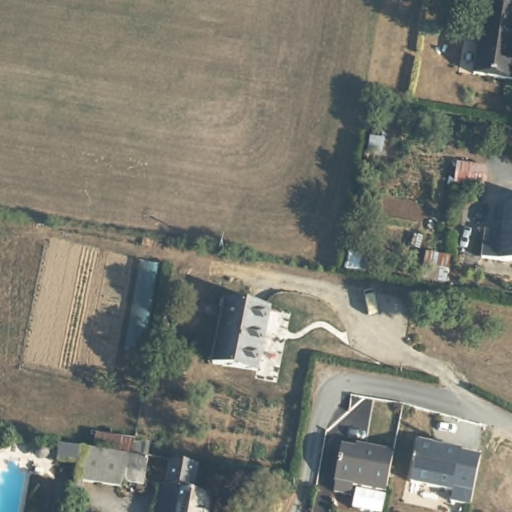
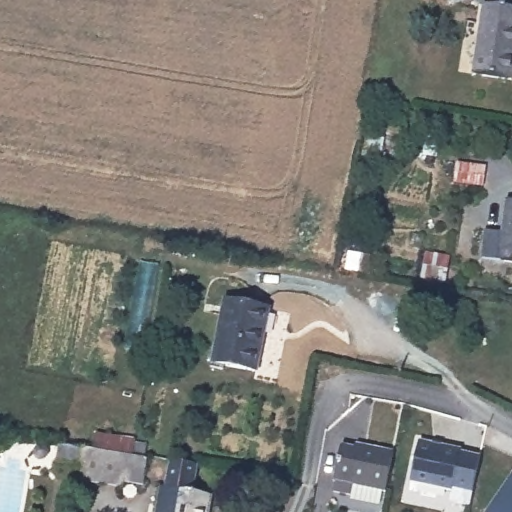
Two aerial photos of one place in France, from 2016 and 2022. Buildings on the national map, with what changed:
demolished [(429,0),(448,0),(447,3),(429,0)]
unchanged [(512,64),(510,76),(473,70),(485,1),(512,6),(512,64)]
unchanged [(512,256),(483,253),(487,225),(504,227),(510,196),(512,196),(512,256)]
unchanged [(268,315),(260,369),(212,360),(222,307),(268,315)]
unchanged [(72,489),(74,479),(77,461),(57,458),(59,442),(75,445),(79,446),(135,454),(137,441),(150,443),(148,456),(145,481),(126,477),(124,487),(86,481),(84,492),(72,489)]
unchanged [(387,487),(355,481),(352,491),(336,488),(337,478),(336,478),(342,442),(363,446),(364,442),(395,448),(387,487)]
unchanged [(457,448),(448,490),(412,485),(419,442),(457,448)]
unchanged [(161,498),(163,481),(168,482),(172,455),(200,460),(197,483),(206,485),(216,487),(211,512),(158,512),(161,498)]
new [(512,512),(487,512),(512,476),(512,512)]

